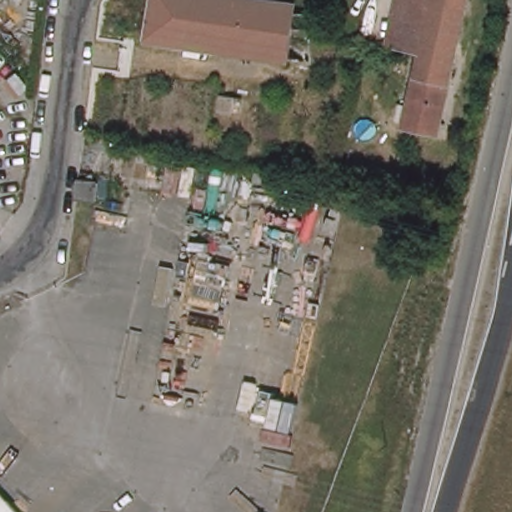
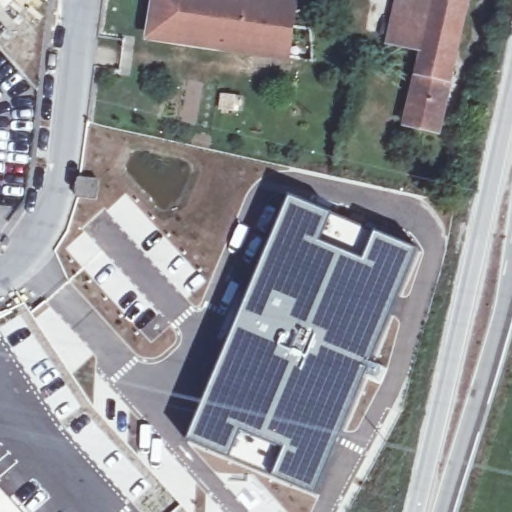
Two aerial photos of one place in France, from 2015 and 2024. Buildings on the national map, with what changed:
unchanged [(293,19),(314,22),(314,36),(306,37),(308,68),(144,41),(145,34),(151,35),(155,0),(225,0),(232,1),(293,10),(293,19)]
unchanged [(232,0),(232,1),(225,0),(232,0)]
unchanged [(402,0),(437,0),(425,54),(392,46),(402,0)]
unchanged [(472,0),(441,134),(409,127),(418,88),(414,86),(416,80),(419,81),(425,54),(437,0),(472,0)]
unchanged [(226,119),(212,116),(216,102),(229,104),(226,119)]
new [(289,196),(332,214),(321,240),(356,254),(364,237),(367,239),(371,230),(421,250),(396,306),(373,363),(356,406),(316,495),(272,478),(284,450),(241,431),(228,461),(186,442),(289,196)]
new [(332,214),(366,227),(364,237),(356,254),(321,240),(332,214)]
new [(241,431),(284,450),(272,478),(228,461),(241,431)]
unchanged [(0,490),(21,512),(0,512),(0,490)]

